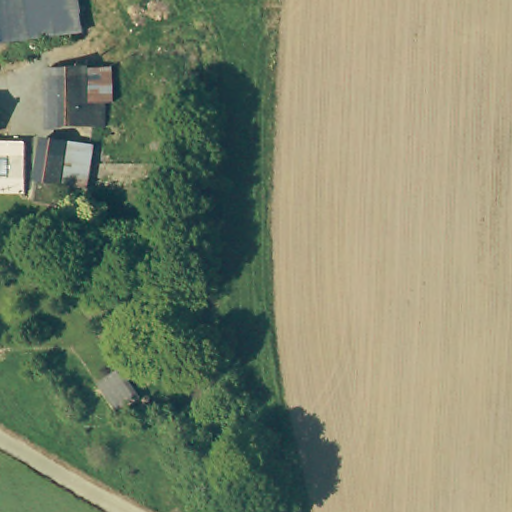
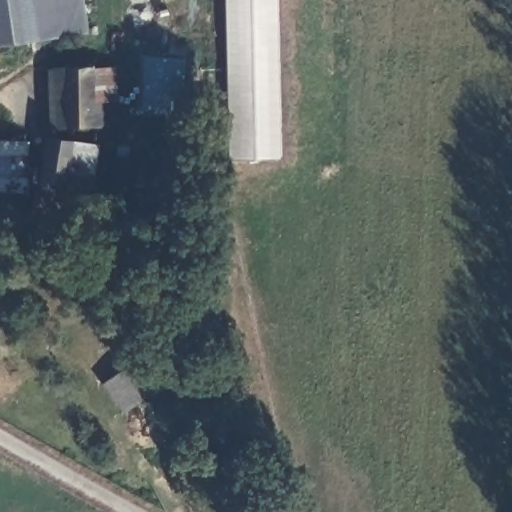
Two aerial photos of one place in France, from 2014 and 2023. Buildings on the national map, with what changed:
unchanged [(84,0),(87,27),(0,40),(0,0),(84,0)]
new [(228,159),(224,0),(276,0),(280,157),(228,159)]
unchanged [(63,129),(57,131),(51,72),(92,66),(116,62),(118,101),(109,102),(95,102),(97,126),(63,129)]
unchanged [(96,183),(38,178),(44,135),(99,140),(96,183)]
new [(122,414),(100,384),(123,367),(144,397),(122,414)]

